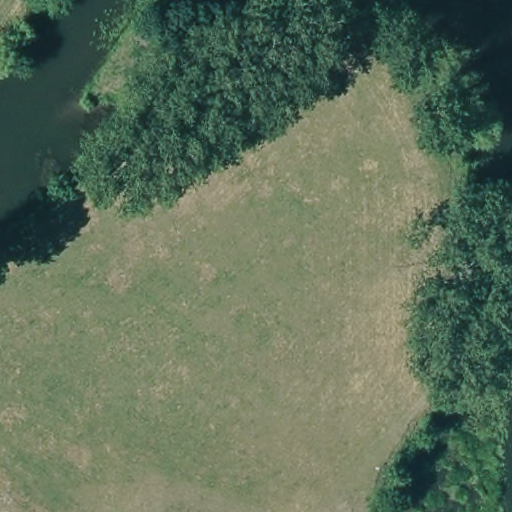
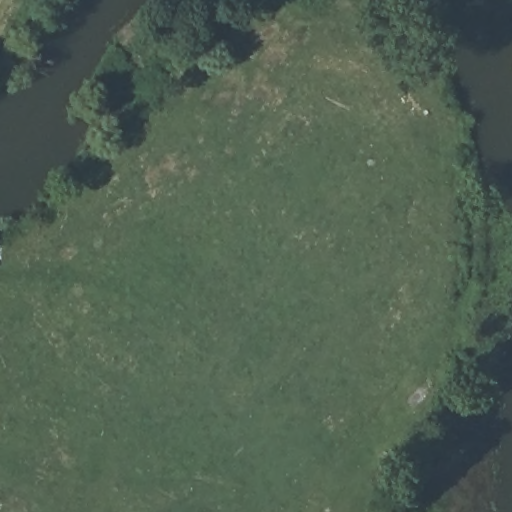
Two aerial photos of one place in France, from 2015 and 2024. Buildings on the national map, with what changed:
[]

